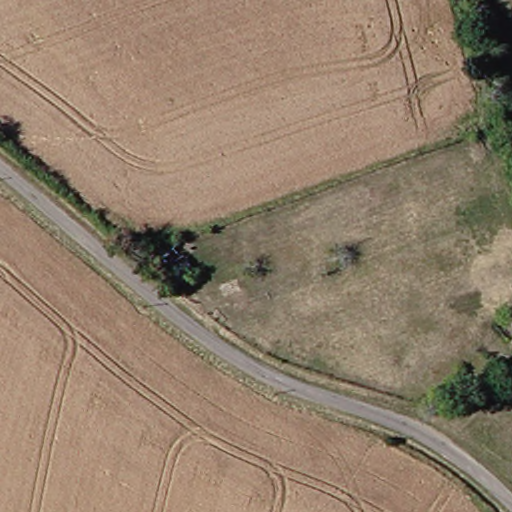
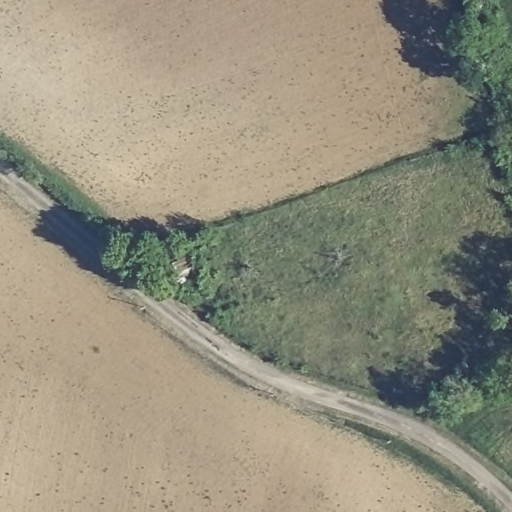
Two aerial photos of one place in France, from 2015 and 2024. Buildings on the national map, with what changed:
unchanged [(161,259),(184,251),(190,265),(166,272),(161,259)]

